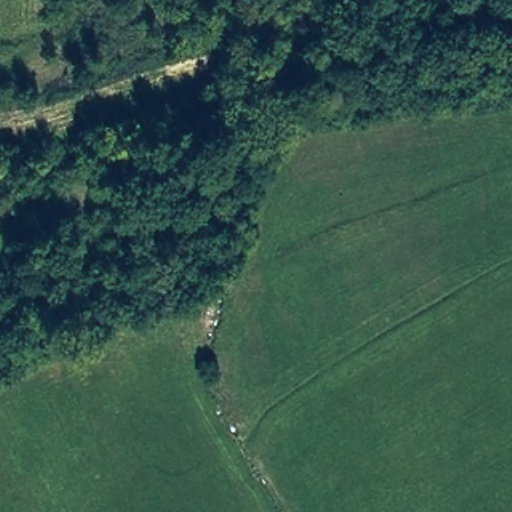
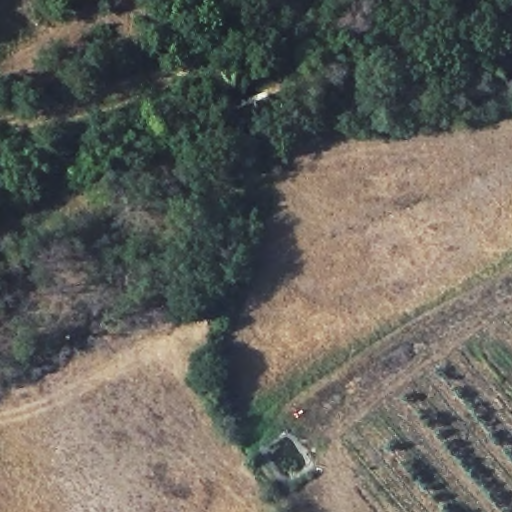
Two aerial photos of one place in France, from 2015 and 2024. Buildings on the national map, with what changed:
unchanged [(2,174),(0,175),(0,168),(2,174)]

